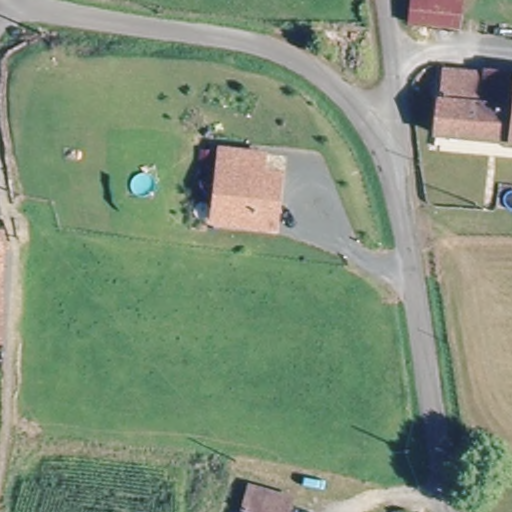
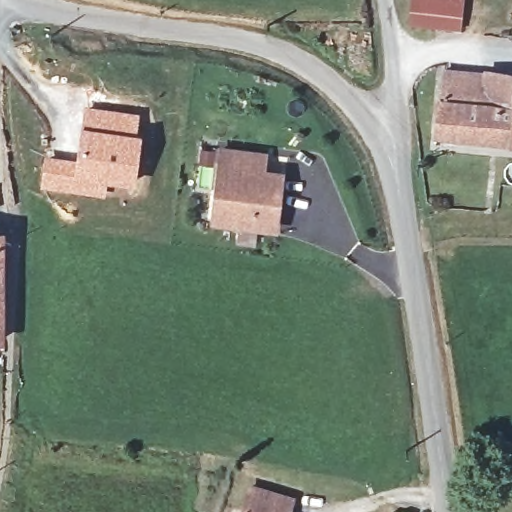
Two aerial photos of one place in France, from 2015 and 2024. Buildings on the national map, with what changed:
unchanged [(414,0),(465,0),(463,17),(413,10),(414,0)]
unchanged [(440,138),(446,78),(488,84),(490,71),(512,74),(512,147),(440,138)]
new [(45,155),(76,158),(85,104),(141,110),(139,130),(142,131),(137,183),(108,180),(106,196),(42,189),(45,155)]
unchanged [(227,151),(267,155),(265,175),(282,175),(278,228),(217,221),(227,151)]
unchanged [(5,336),(0,337),(0,234),(4,234),(5,336)]
unchanged [(241,508),(249,482),(295,495),(289,512),(253,512),(241,508)]

